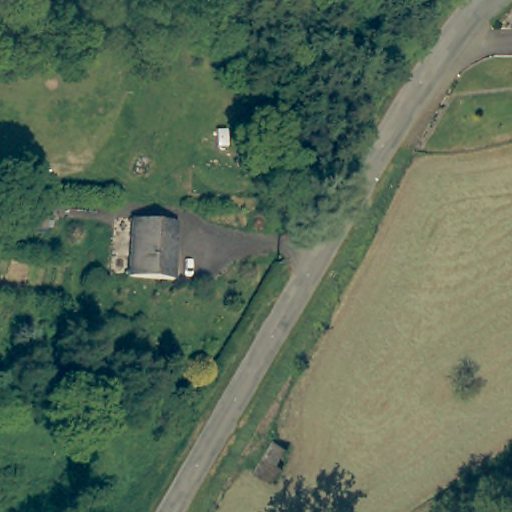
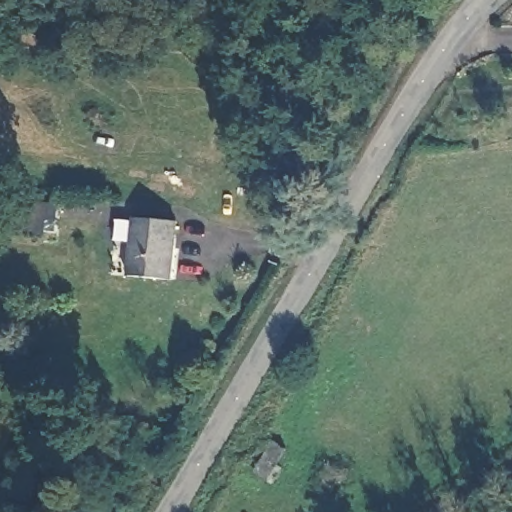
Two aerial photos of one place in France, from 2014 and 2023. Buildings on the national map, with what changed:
unchanged [(134,214),(178,218),(171,274),(131,270),(134,214)]
unchanged [(265,476),(286,451),(297,461),(288,472),(295,478),(283,492),(265,476)]

